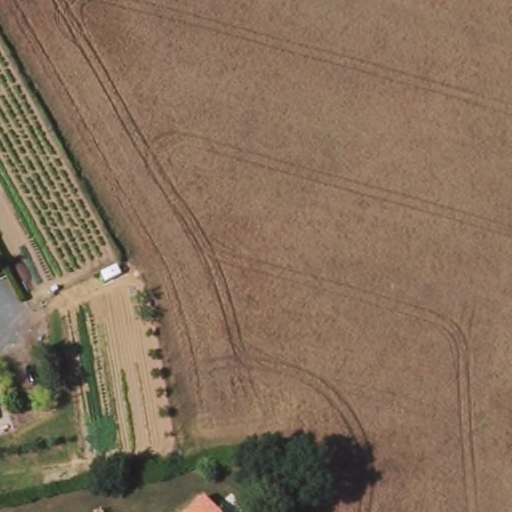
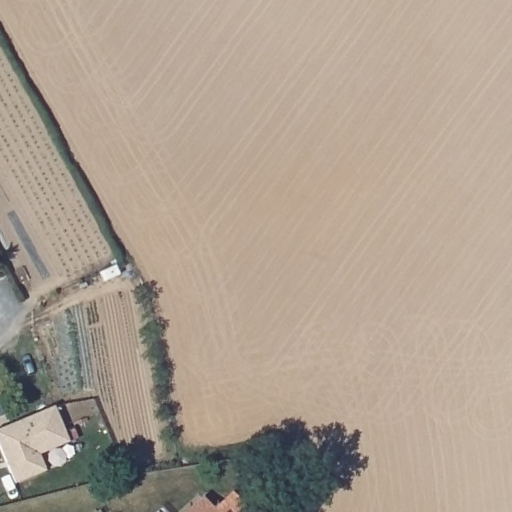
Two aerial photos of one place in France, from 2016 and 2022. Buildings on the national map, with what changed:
new [(55,406),(70,442),(40,455),(47,470),(14,483),(0,449),(0,428),(55,406)]
unchanged [(207,497),(221,512),(189,512),(207,497)]

